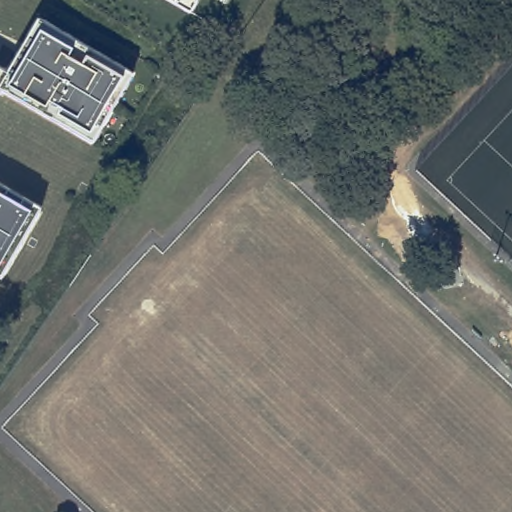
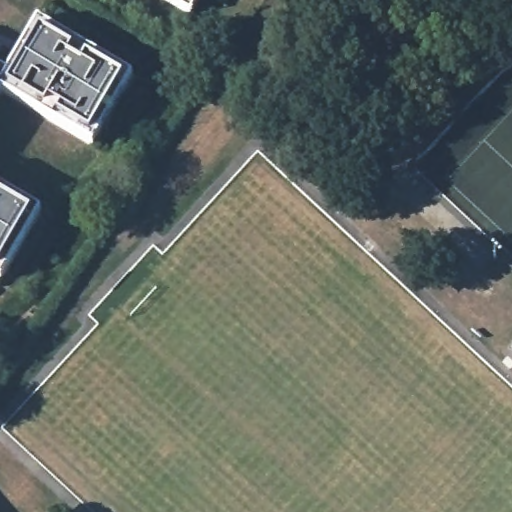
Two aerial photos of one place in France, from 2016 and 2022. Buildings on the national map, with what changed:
unchanged [(192,14),(167,0),(199,0),(192,14)]
unchanged [(211,1),(209,0),(212,0),(211,1)]
unchanged [(96,147),(2,93),(0,95),(0,68),(10,74),(40,22),(134,75),(96,147)]
unchanged [(0,278),(0,182),(40,205),(0,278)]

